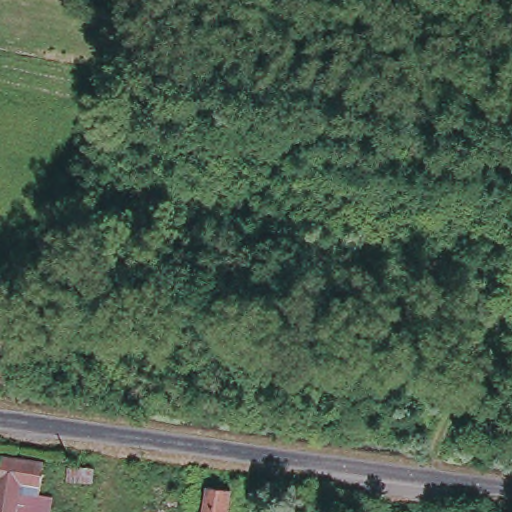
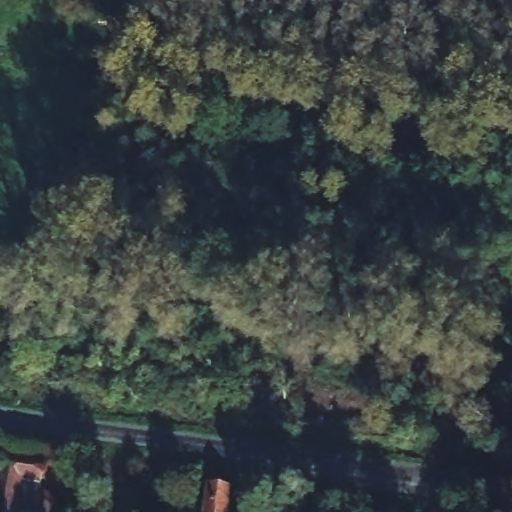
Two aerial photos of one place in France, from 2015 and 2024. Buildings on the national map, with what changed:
unchanged [(42,462),(37,495),(44,497),(41,512),(0,512),(0,459),(0,456),(42,462)]
unchanged [(97,465),(96,477),(71,474),(72,463),(97,465)]
unchanged [(208,487),(232,490),(230,512),(205,512),(208,487)]

